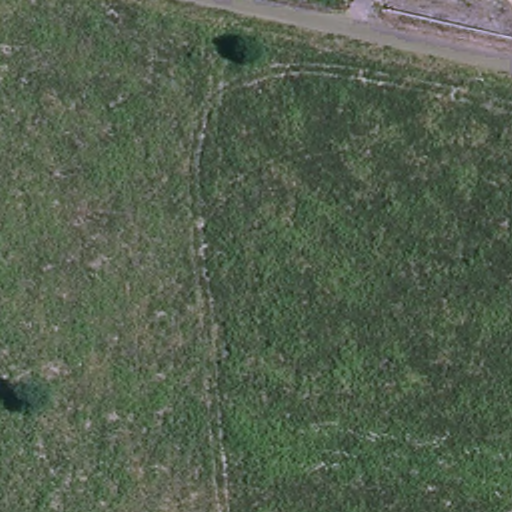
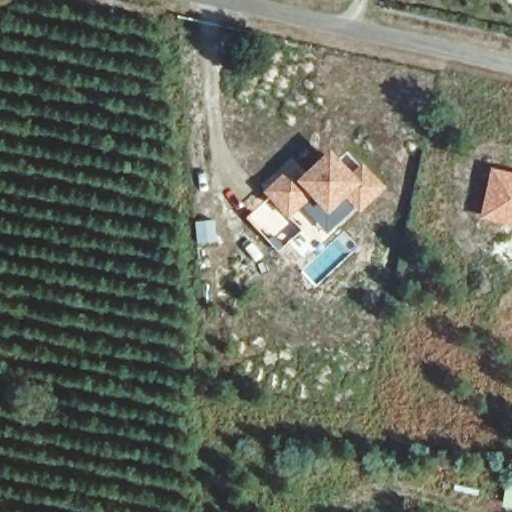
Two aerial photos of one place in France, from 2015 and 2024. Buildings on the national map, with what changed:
new [(304,174),(330,149),(351,172),(363,162),(387,185),(360,211),(348,196),(328,215),(311,197),(288,219),(262,191),(292,165),(304,174)]
new [(490,167),(512,172),(512,226),(479,218),(490,167)]

